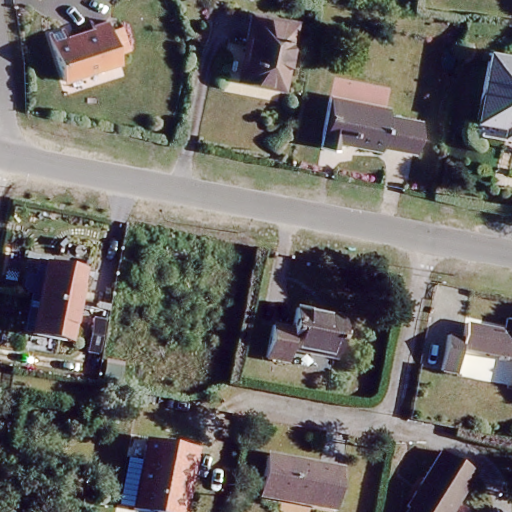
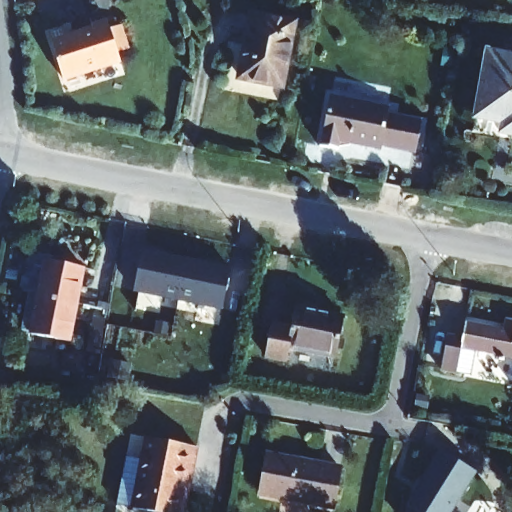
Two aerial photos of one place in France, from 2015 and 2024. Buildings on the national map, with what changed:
unchanged [(294,25),(281,87),(241,81),(253,18),(294,25)]
unchanged [(69,30),(73,37),(98,29),(98,26),(113,21),(126,62),(69,81),(54,35),(69,30)]
unchanged [(512,52),(512,121),(477,114),(490,47),(512,52)]
unchanged [(379,104),(378,110),(373,140),(371,143),(329,136),(327,145),(309,142),(318,92),(379,104)]
unchanged [(412,116),(407,146),(373,140),(378,110),(412,116)]
new [(148,252),(192,262),(184,301),(139,292),(148,252)]
new [(192,262),(236,271),(228,311),(184,301),(192,262)]
unchanged [(83,271),(68,343),(30,336),(44,264),(83,271)]
unchanged [(266,360),(273,327),(291,330),(296,308),(342,317),(334,357),(288,349),(285,362),(266,360)]
unchanged [(462,348),(456,372),(442,369),(449,336),(463,338),(467,322),(506,331),(509,317),(512,318),(512,360),(462,348)]
unchanged [(511,392),(512,387),(512,392),(511,392)]
unchanged [(148,442),(198,451),(191,485),(185,512),(130,512),(148,442)]
unchanged [(474,470),(449,512),(407,512),(411,506),(408,505),(441,450),(474,470)]
unchanged [(339,472),(334,511),(259,498),(266,460),(339,472)]

